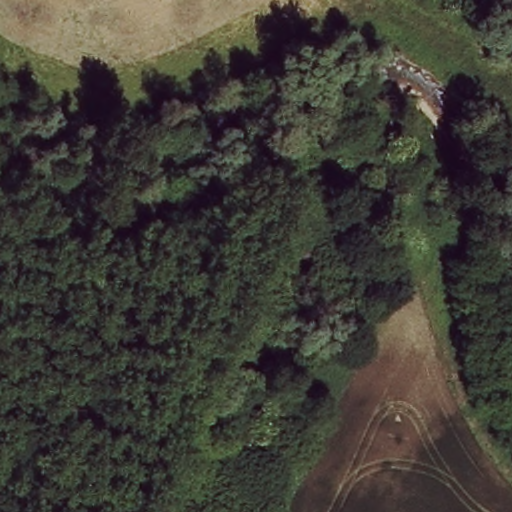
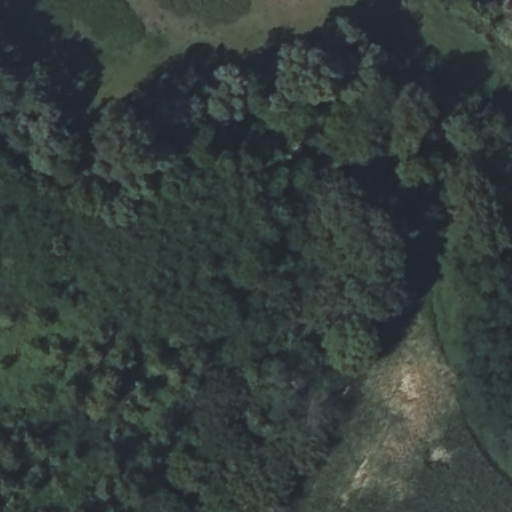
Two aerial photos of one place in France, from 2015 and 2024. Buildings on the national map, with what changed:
[]

